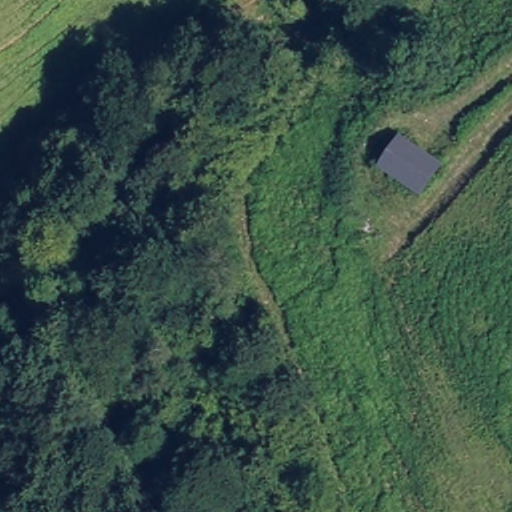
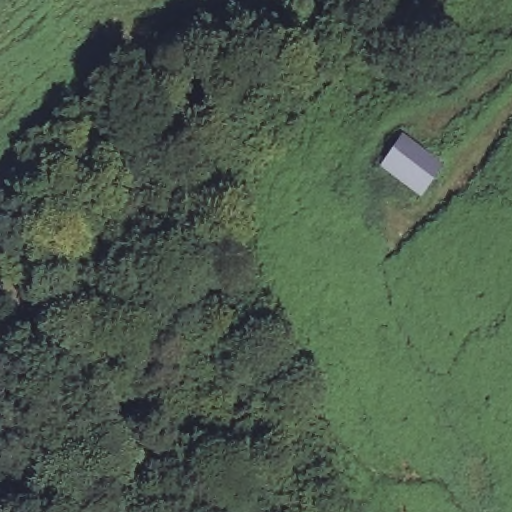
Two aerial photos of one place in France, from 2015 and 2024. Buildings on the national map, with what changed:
unchanged [(422,206),(383,177),(403,150),(441,178),(422,206)]

